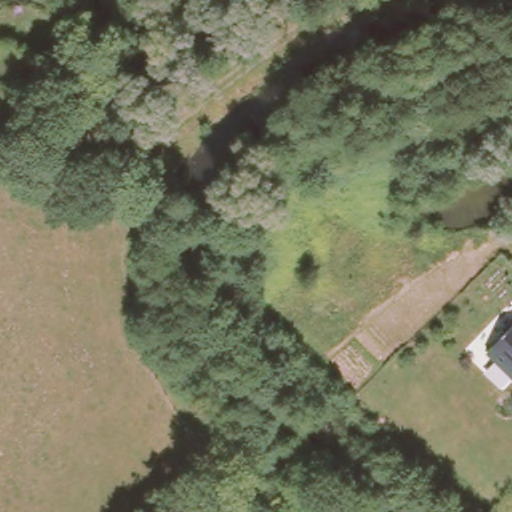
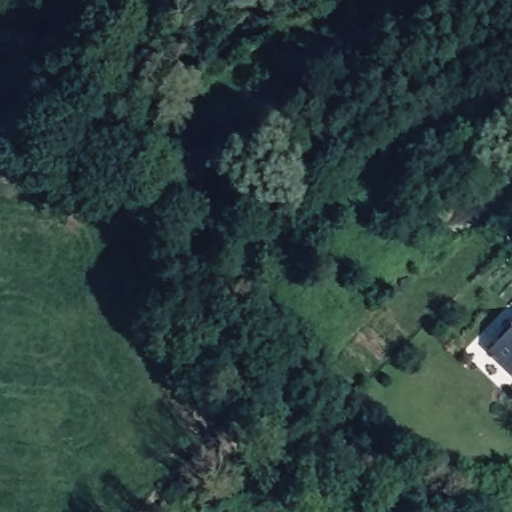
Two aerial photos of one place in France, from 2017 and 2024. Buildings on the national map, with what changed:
unchanged [(512,326),(512,378),(486,354),(512,326)]

